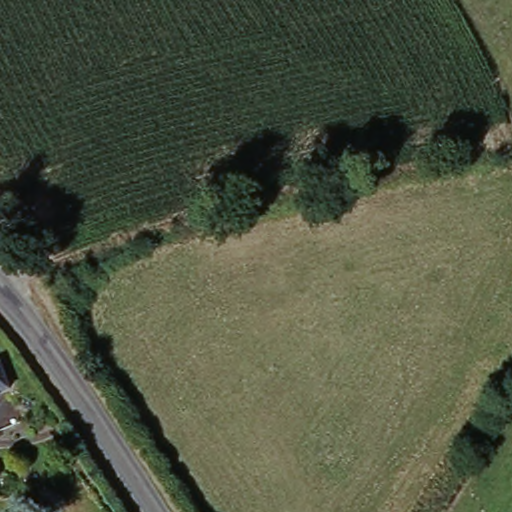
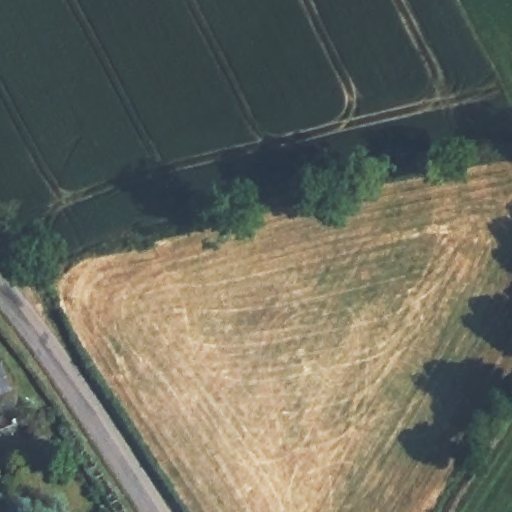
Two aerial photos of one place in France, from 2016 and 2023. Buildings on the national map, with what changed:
unchanged [(6,371),(15,397),(0,404),(0,374),(6,371)]

